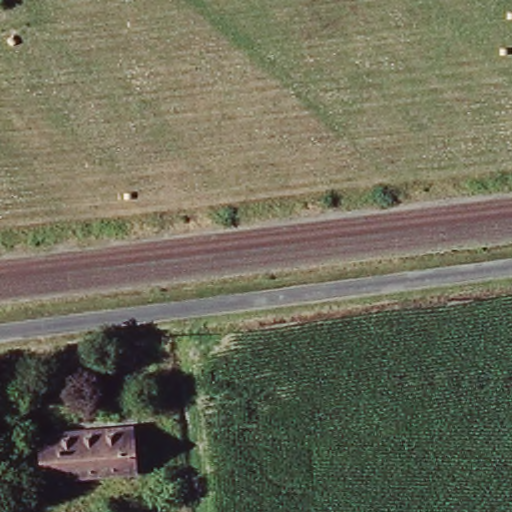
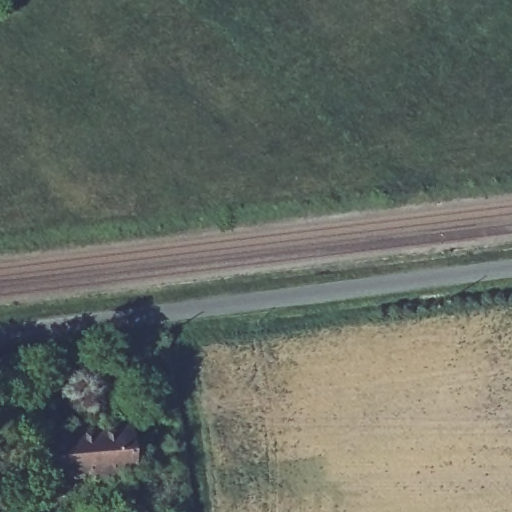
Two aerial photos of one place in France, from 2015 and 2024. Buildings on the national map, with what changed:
unchanged [(49,432),(135,421),(141,468),(54,480),(49,432)]

